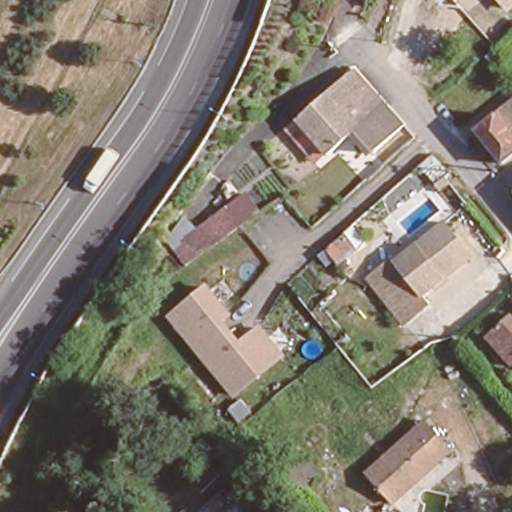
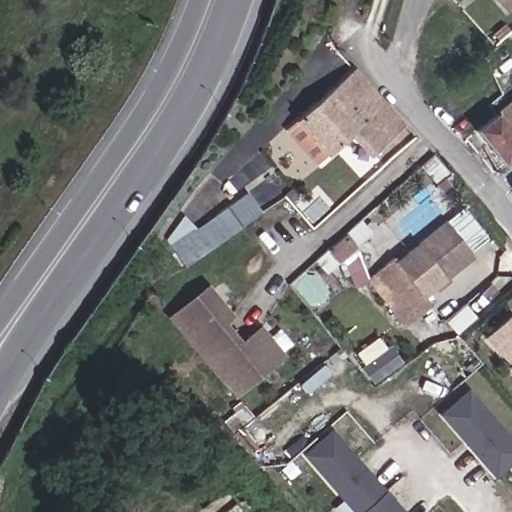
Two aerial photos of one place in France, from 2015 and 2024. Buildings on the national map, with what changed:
unchanged [(497,0),(512,0),(512,8),(507,13),(497,0)]
unchanged [(296,146),(286,134),(296,125),(292,122),(348,72),(362,87),(378,105),(349,131),(322,155),(320,152),(310,162),(296,146)]
unchanged [(512,101),(512,122),(483,147),(473,135),(512,101)]
unchanged [(400,129),(370,156),(349,131),(378,105),(400,129)]
unchanged [(512,122),(512,157),(500,167),(483,147),(512,122)]
unchanged [(217,225),(213,219),(246,197),(259,218),(185,270),(180,262),(194,253),(189,245),(217,225)]
unchanged [(391,259),(394,262),(445,221),(474,257),(448,277),(451,282),(426,301),(430,306),(404,325),(366,280),(391,259)]
unchanged [(348,235),(358,248),(337,266),(327,253),(326,252),(347,234),(348,235)]
unchanged [(236,402),(166,317),(209,283),(233,316),(228,322),(241,341),(261,326),(287,358),(236,402)]
unchanged [(488,340),(512,318),(512,319),(512,365),(511,366),(488,340)]
new [(512,436),(512,463),(501,473),(446,415),(471,392),(512,436)]
demolished [(452,454),(394,504),(369,475),(426,425),(452,454)]
new [(302,454),(331,428),(386,491),(404,512),(352,512),(302,454)]
demolished [(292,446),(305,462),(291,472),(279,455),(292,446)]

